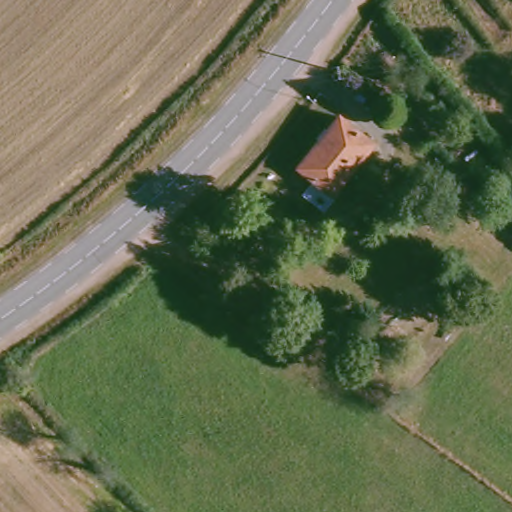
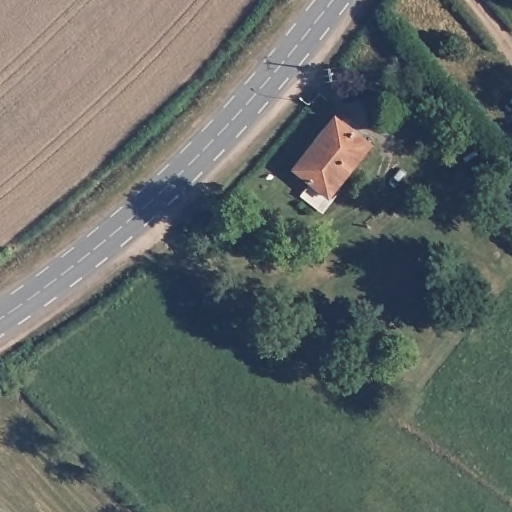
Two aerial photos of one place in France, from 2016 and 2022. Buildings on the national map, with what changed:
unchanged [(327,199),(292,170),(335,118),(371,148),(327,199)]
unchanged [(490,195),(502,184),(509,191),(498,202),(490,195)]
unchanged [(512,220),(505,213),(512,207),(512,220)]

